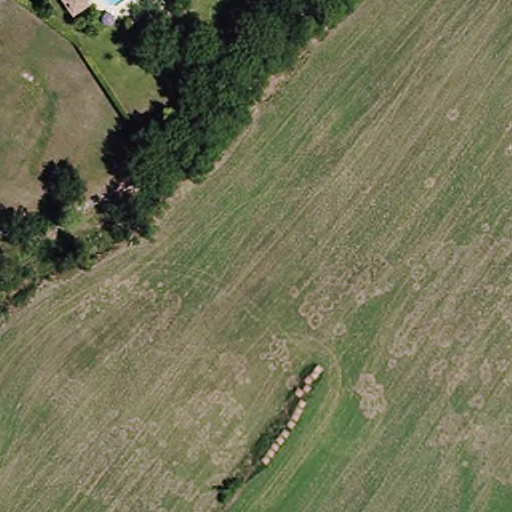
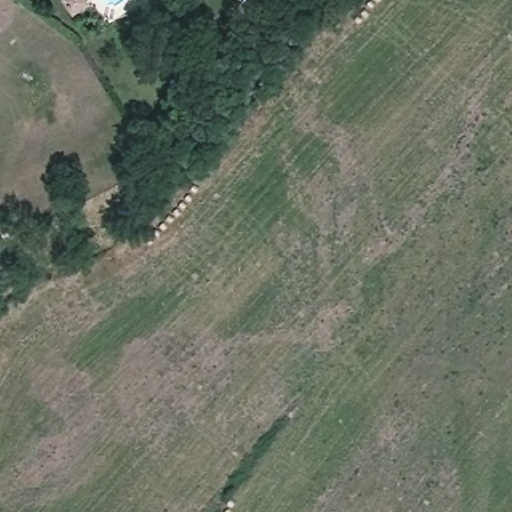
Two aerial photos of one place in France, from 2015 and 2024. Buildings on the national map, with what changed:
unchanged [(60,0),(80,0),(82,5),(65,15),(60,0)]

